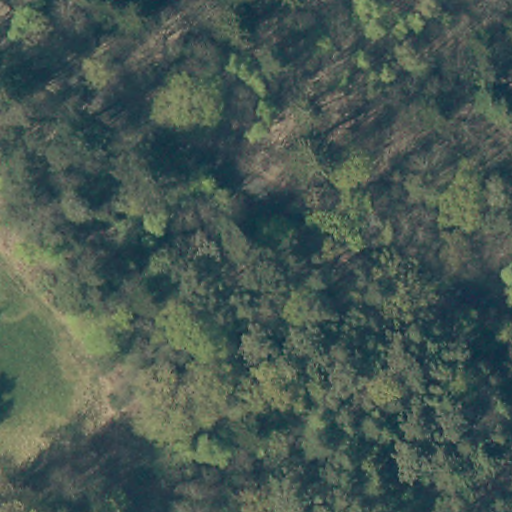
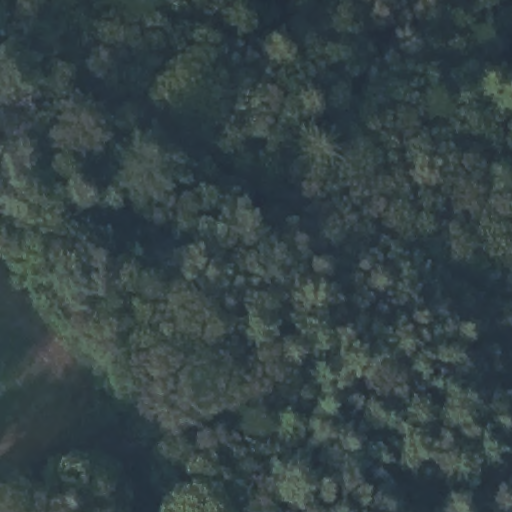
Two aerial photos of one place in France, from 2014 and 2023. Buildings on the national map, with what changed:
[]

